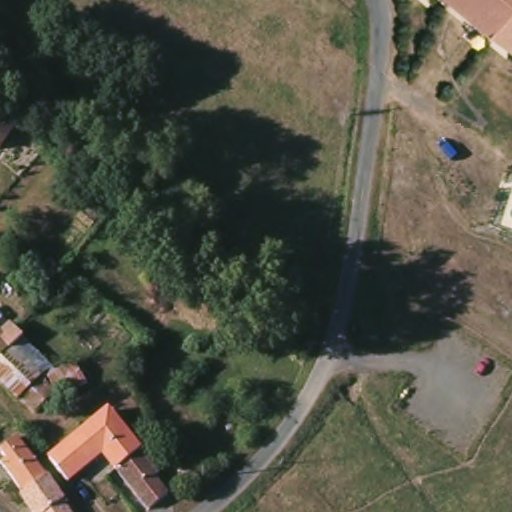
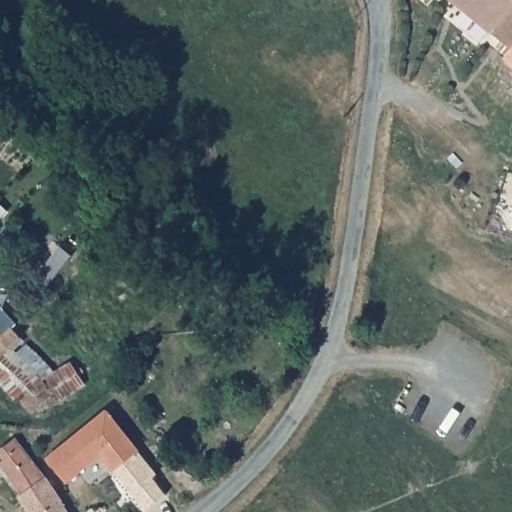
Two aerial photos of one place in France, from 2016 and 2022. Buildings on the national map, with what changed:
unchanged [(447,0),(512,0),(512,46),(447,0)]
unchanged [(0,139),(0,113),(2,110),(23,123),(9,145),(0,139)]
unchanged [(15,330),(21,338),(16,342),(11,347),(8,345),(0,352),(0,336),(1,337),(11,329),(15,330)]
unchanged [(24,410),(13,396),(11,397),(0,386),(0,352),(8,345),(11,347),(46,389),(24,410)]
unchanged [(51,371),(65,362),(76,375),(79,380),(54,397),(41,377),(51,371)]
unchanged [(166,489),(148,507),(114,473),(98,457),(90,463),(86,459),(60,482),(53,473),(45,463),(72,442),(87,430),(104,416),(131,447),(134,450),(166,489)]
unchanged [(22,500),(10,483),(13,482),(2,468),(7,464),(0,453),(17,441),(35,465),(46,481),(62,502),(70,512),(32,512),(30,510),(22,500)]

